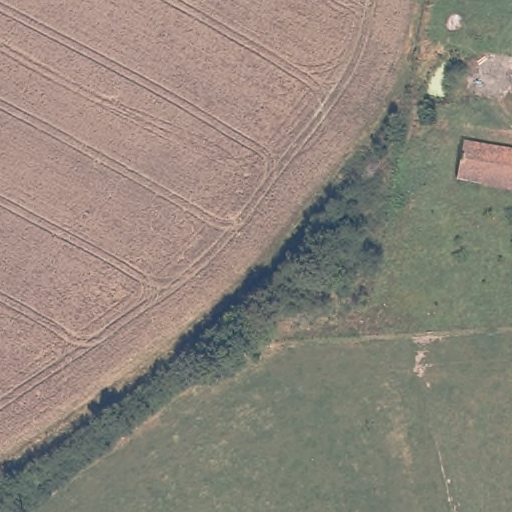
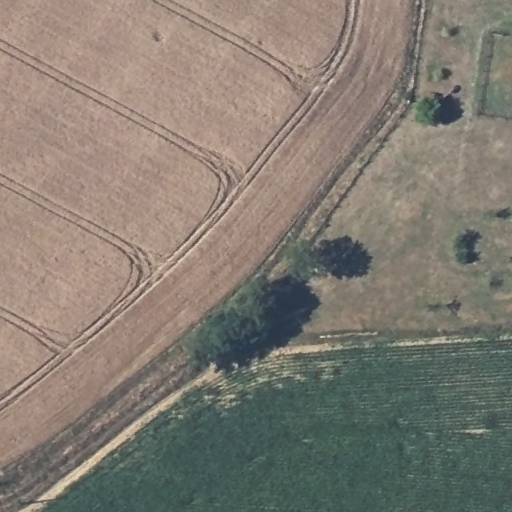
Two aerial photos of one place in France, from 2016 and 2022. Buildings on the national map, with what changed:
demolished [(465,187),(472,147),(512,153),(512,194),(465,187)]

